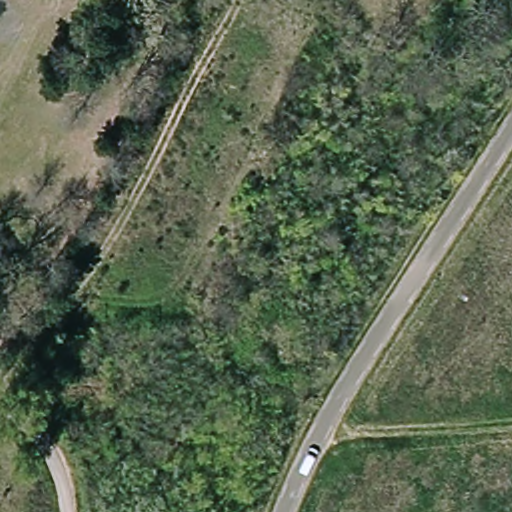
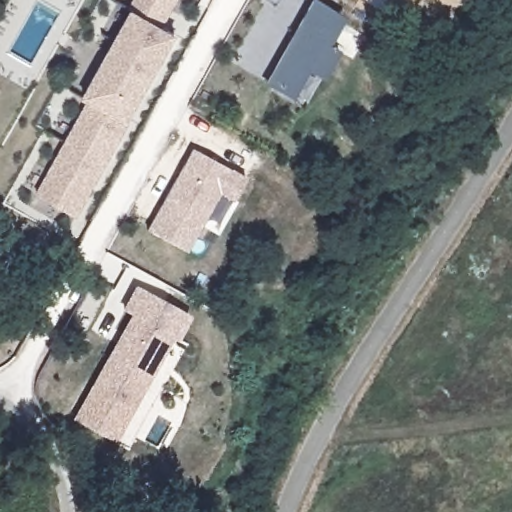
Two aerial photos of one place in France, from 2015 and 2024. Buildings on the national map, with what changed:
new [(81,98),(130,9),(127,8),(132,0),(177,0),(162,26),(177,34),(127,123),(77,218),(35,193),(86,101),(81,98)]
new [(345,19),(329,47),(338,52),(321,80),(307,73),(290,101),(262,85),(309,0),(314,0),(345,19)]
new [(243,179),(231,201),(217,193),(185,252),(147,231),(192,150),(243,179)]
new [(72,419),(108,358),(130,316),(121,310),(135,287),(191,318),(178,342),(173,339),(150,383),(115,444),(72,419)]

